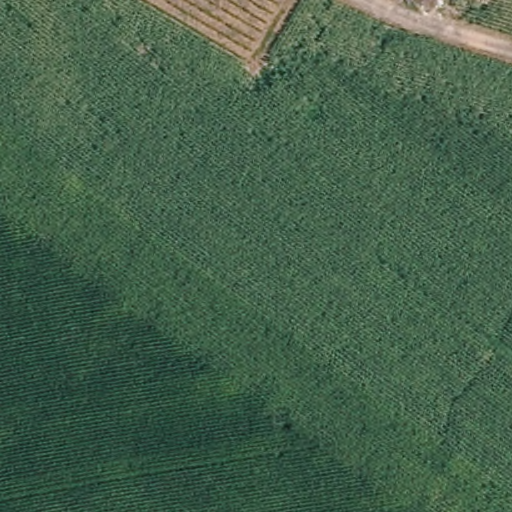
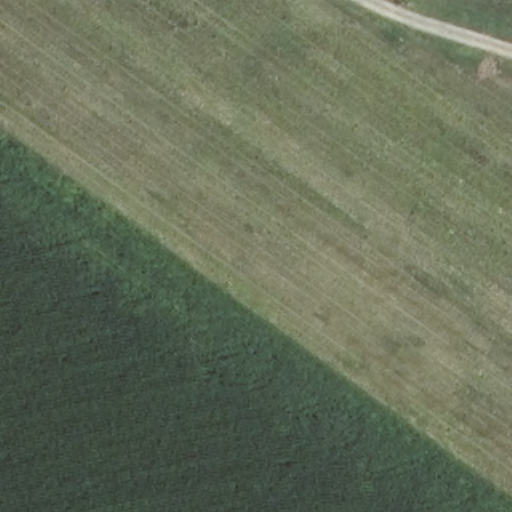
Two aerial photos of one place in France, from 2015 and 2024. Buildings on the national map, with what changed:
[]

